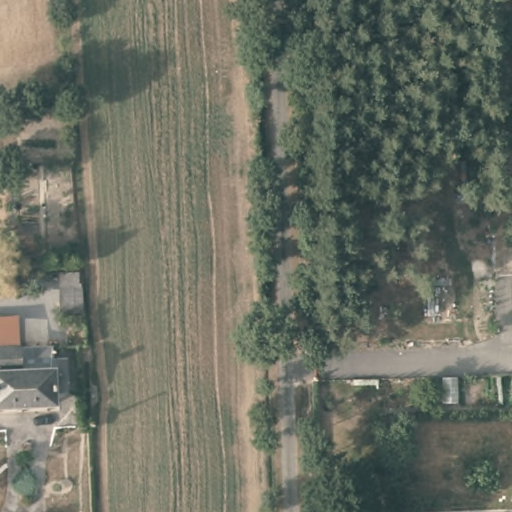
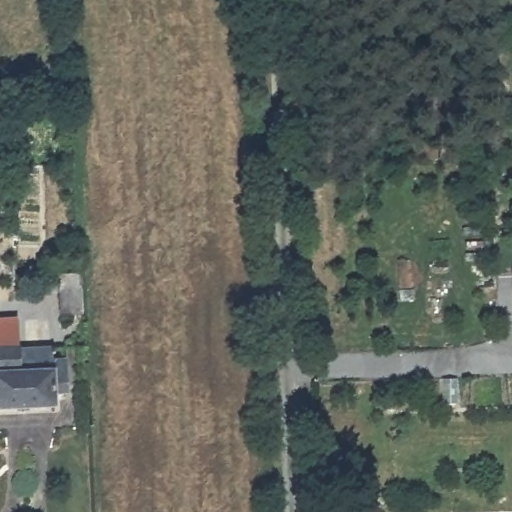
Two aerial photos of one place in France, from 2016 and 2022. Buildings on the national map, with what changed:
unchanged [(77,315),(61,313),(65,271),(82,272),(77,315)]
unchanged [(21,347),(0,348),(0,320),(19,319),(21,347)]
unchanged [(57,346),(56,361),(69,361),(71,392),(57,393),(56,407),(0,409),(0,348),(21,347),(57,346)]

